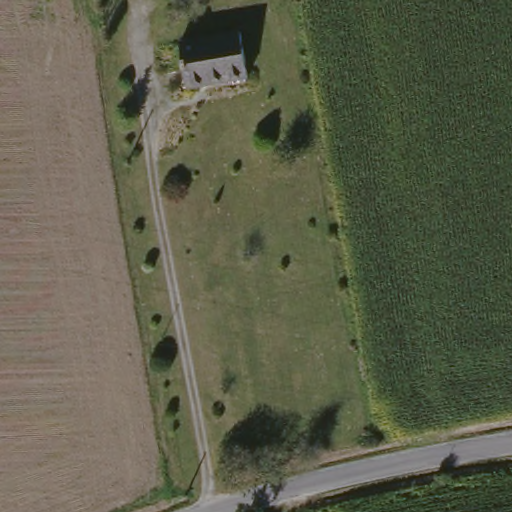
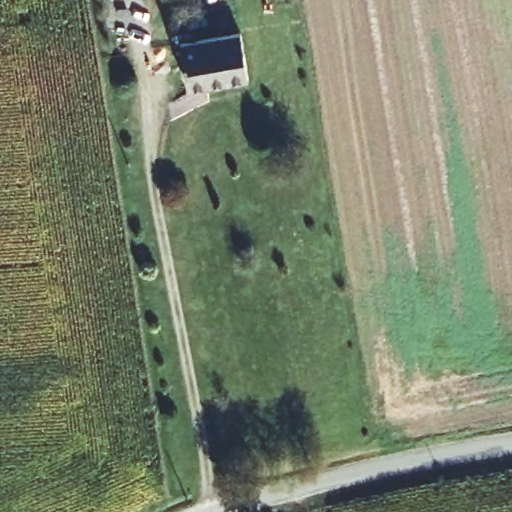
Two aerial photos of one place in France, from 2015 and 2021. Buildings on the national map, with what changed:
unchanged [(247,80),(187,91),(179,49),(239,36),(247,80)]

